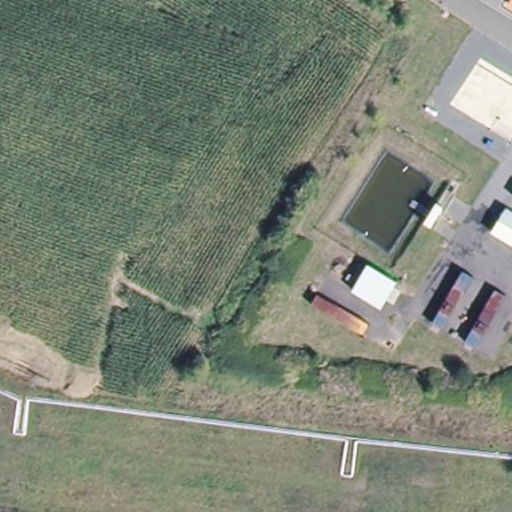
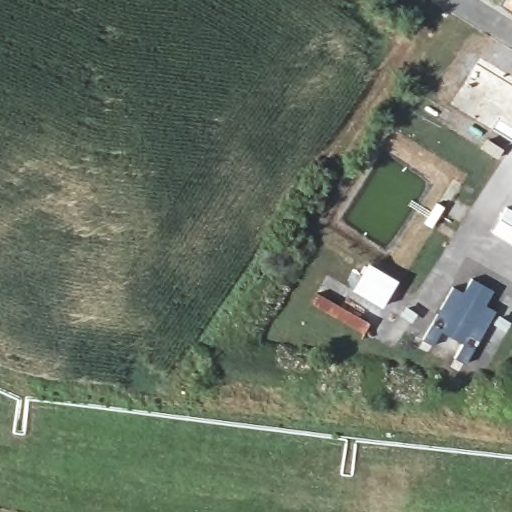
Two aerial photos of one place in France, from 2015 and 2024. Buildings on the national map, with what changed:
unchanged [(507,5),(511,0),(512,0),(512,8),(507,5)]
new [(463,293),(470,278),(493,291),(485,305),(497,312),(468,364),(455,359),(463,344),(441,333),(433,345),(423,339),(453,288),(463,293)]

